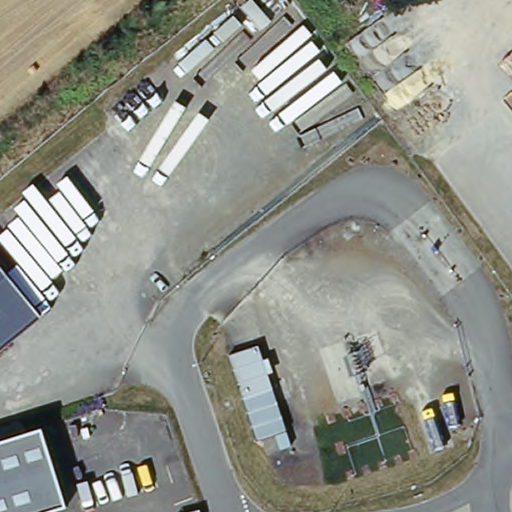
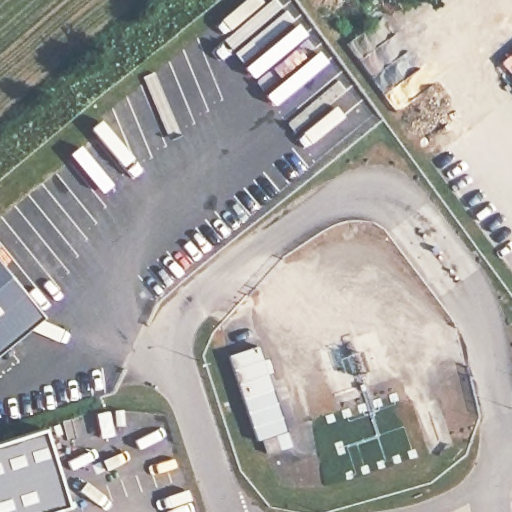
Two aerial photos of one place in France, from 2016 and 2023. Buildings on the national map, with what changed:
unchanged [(0,346),(0,287),(29,323),(0,346)]
unchanged [(268,451),(264,436),(258,437),(226,353),(256,345),(288,428),(276,432),(280,447),(268,451)]
unchanged [(49,512),(0,512),(0,441),(41,427),(66,507),(49,512)]

